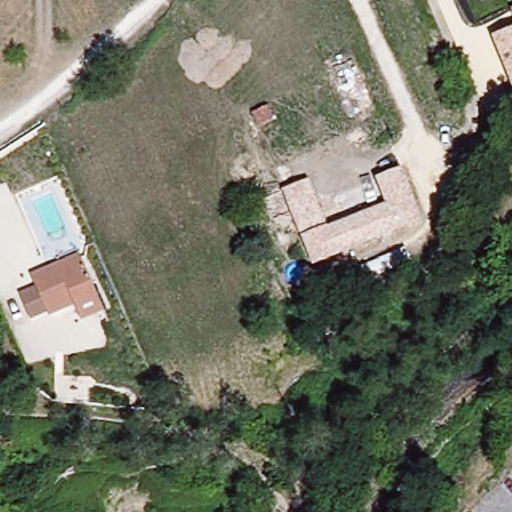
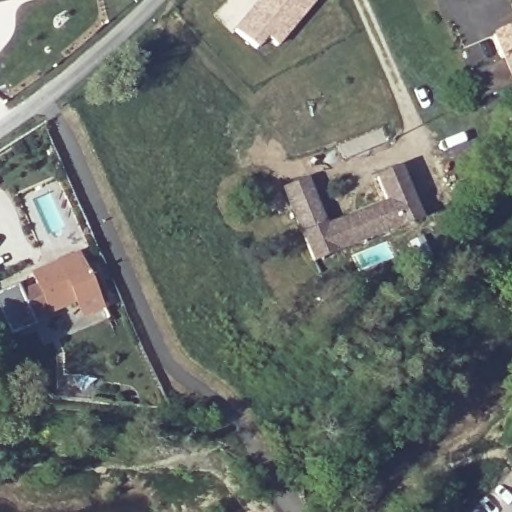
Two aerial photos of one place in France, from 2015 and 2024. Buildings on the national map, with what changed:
new [(0,0),(15,0),(0,3),(0,0)]
new [(260,37),(251,49),(229,32),(254,0),(307,0),(271,45),(260,37)]
unchanged [(509,86),(489,39),(512,28),(512,85),(509,86)]
unchanged [(272,119),(256,126),(250,114),(266,106),(272,119)]
unchanged [(305,184),(315,212),(333,205),(330,197),(398,172),(417,222),(311,264),(291,212),(271,220),(263,200),(281,193),(305,184)]
unchanged [(78,316),(72,302),(48,311),(33,274),(79,257),(93,293),(95,297),(98,309),(78,316)]

